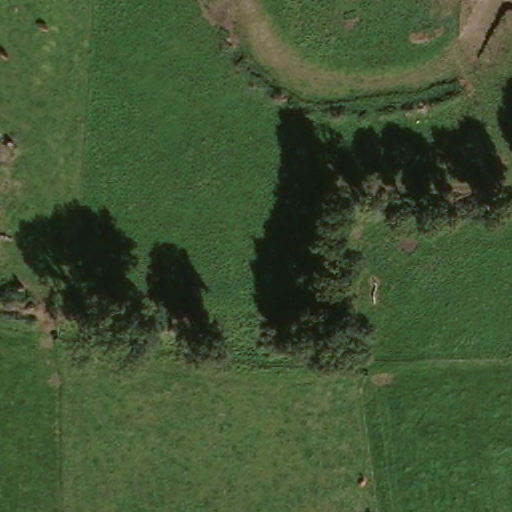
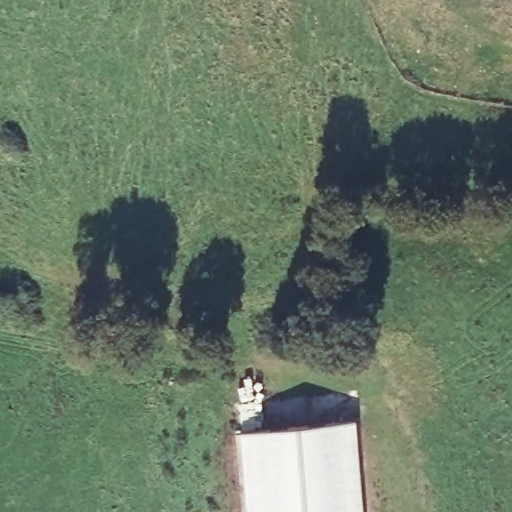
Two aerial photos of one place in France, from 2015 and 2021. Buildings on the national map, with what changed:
new [(241,432),(355,422),(362,512),(247,512),(241,432)]

